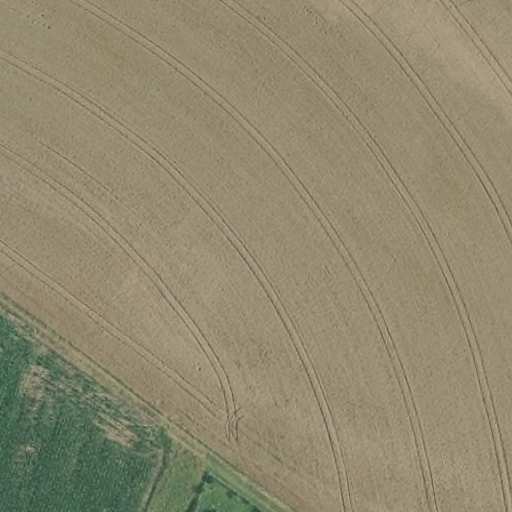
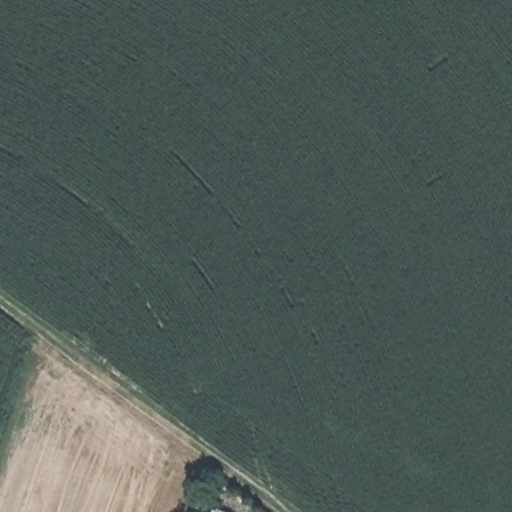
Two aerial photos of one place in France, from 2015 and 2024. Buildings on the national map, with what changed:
unchanged [(214,508),(222,512),(212,512),(214,508)]

